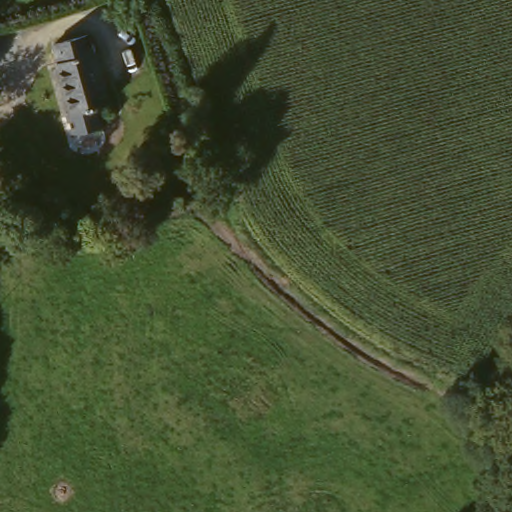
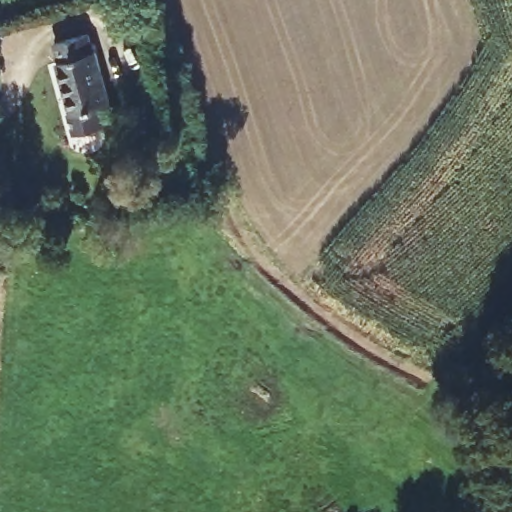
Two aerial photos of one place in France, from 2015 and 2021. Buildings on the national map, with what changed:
unchanged [(94,30),(99,50),(105,48),(119,97),(70,111),(55,60),(63,58),(58,40),(94,30)]

